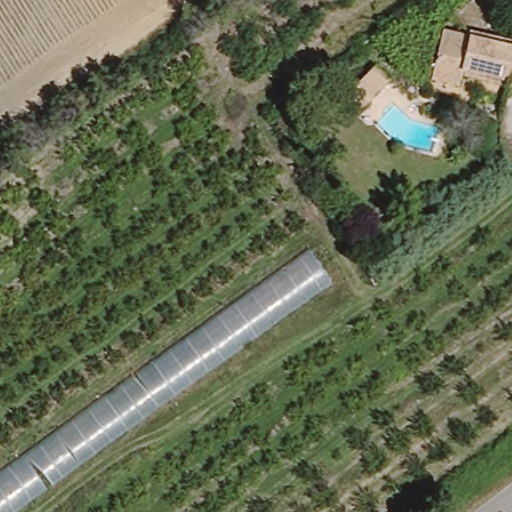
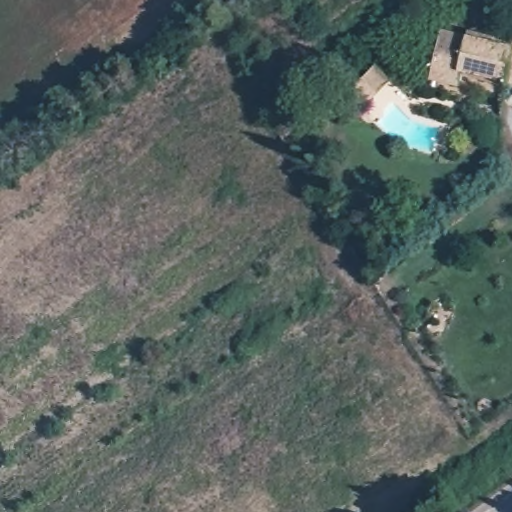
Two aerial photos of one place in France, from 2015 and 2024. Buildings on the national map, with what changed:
unchanged [(447,27),(512,42),(512,82),(465,71),(462,84),(435,78),(447,27)]
demolished [(13,512),(0,512),(0,470),(308,251),(331,291),(13,512)]

